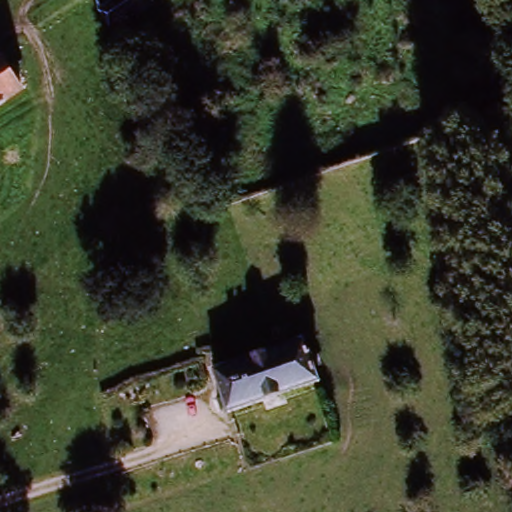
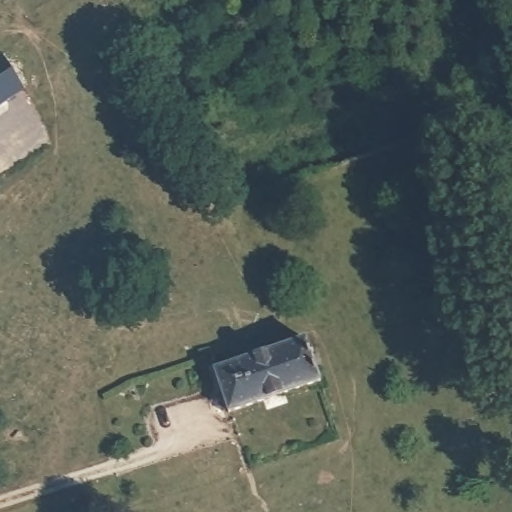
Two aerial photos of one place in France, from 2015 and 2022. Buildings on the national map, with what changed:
unchanged [(103,0),(152,0),(156,6),(112,37),(97,3),(103,0)]
unchanged [(0,112),(0,58),(26,95),(0,112)]
unchanged [(231,415),(217,374),(302,346),(315,386),(231,415)]

